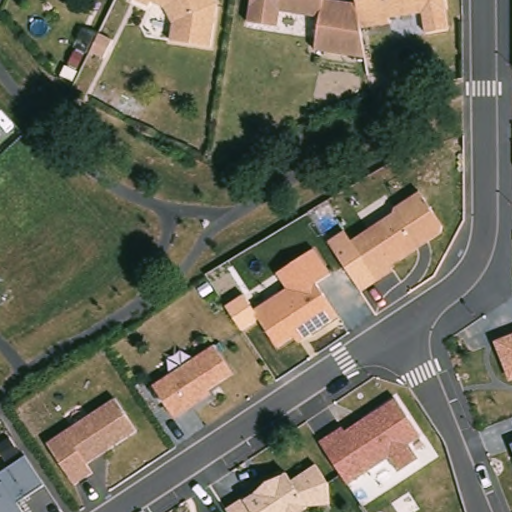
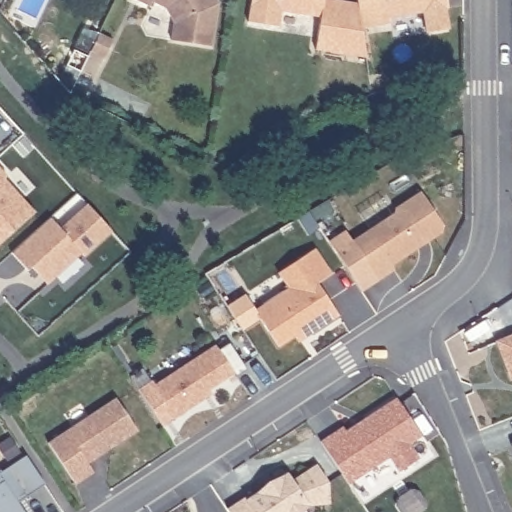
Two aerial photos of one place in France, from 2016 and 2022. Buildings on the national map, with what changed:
unchanged [(215,37),(175,31),(178,14),(170,0),(221,0),(215,37)]
unchanged [(361,26),(361,29),(366,58),(316,50),(321,18),(282,11),(280,27),(249,22),(253,0),(328,0),(358,5),(361,26)]
unchanged [(358,5),(357,0),(447,0),(449,10),(390,19),(391,24),(361,29),(361,26),(358,5)]
unchanged [(87,39),(79,57),(65,50),(74,32),(87,39)]
new [(0,242),(0,169),(6,175),(3,178),(34,210),(0,242)]
unchanged [(443,232),(390,266),(393,272),(377,283),(353,242),(394,213),(394,209),(420,193),(443,232)]
new [(33,268),(30,271),(13,253),(52,218),(62,229),(89,205),(113,231),(85,257),(83,254),(52,282),(48,285),(33,268)]
unchanged [(331,275),(317,284),(339,318),(298,343),(294,338),(278,349),(254,311),(287,290),(277,275),(316,250),(331,275)]
unchanged [(495,341),(512,335),(512,381),(510,382),(495,341)]
unchanged [(233,376),(175,418),(155,386),(216,348),(233,376)]
unchanged [(341,426),(343,429),(397,396),(420,434),(410,440),(420,456),(399,469),(390,456),(349,484),(321,440),(341,426)]
unchanged [(137,431),(86,466),(92,476),(75,485),(49,444),(115,399),(137,431)]
unchanged [(512,445),(512,447),(511,445),(512,445)]
unchanged [(26,453),(44,483),(18,500),(24,512),(0,512),(0,471),(26,453)]
unchanged [(245,498),(285,471),(292,480),(317,464),(330,484),(332,502),(311,504),(299,512),(228,512),(227,509),(245,498)]

